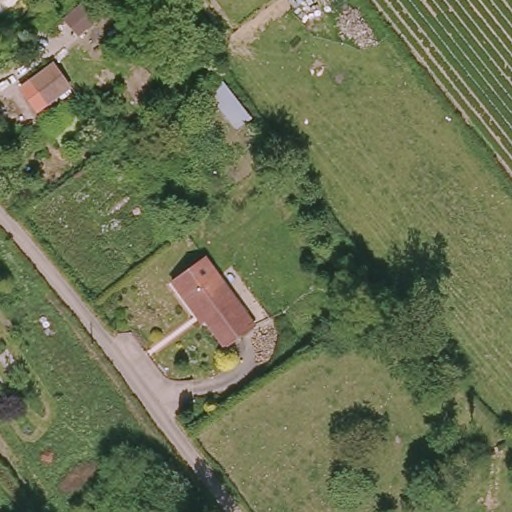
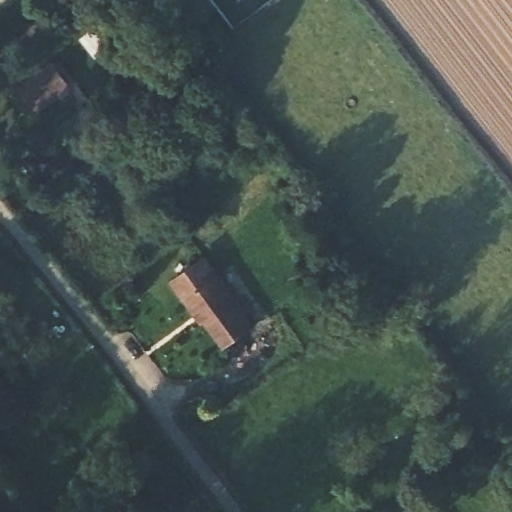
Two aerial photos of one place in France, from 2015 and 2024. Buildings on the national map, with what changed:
unchanged [(49,108),(27,80),(53,61),(75,88),(49,108)]
unchanged [(237,133),(206,89),(224,77),(255,118),(237,133)]
unchanged [(27,80),(47,106),(37,114),(17,87),(27,80)]
unchanged [(227,352),(203,320),(200,322),(187,303),(177,287),(179,286),(209,263),(209,264),(220,280),(257,331),(227,352)]

